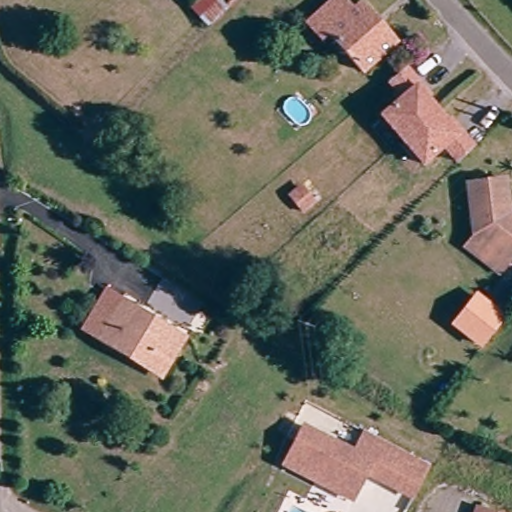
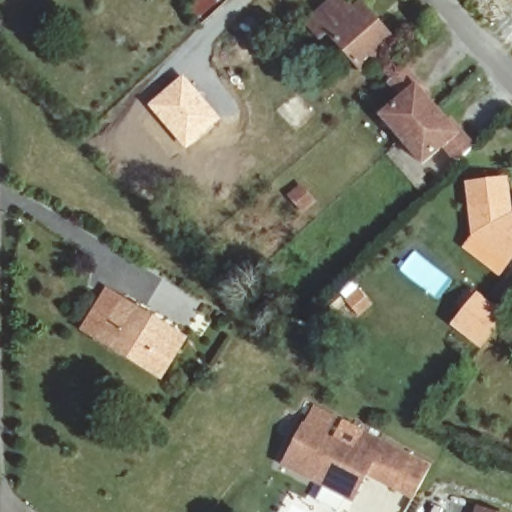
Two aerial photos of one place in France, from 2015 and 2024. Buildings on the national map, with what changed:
unchanged [(354,13),(361,7),(395,46),(363,75),(331,39),(325,44),(309,28),(339,0),(341,0),(354,13)]
unchanged [(467,137),(482,152),(477,156),(465,167),(450,151),(430,170),(379,118),(400,100),(386,84),(403,69),(421,88),(435,102),(432,105),(455,129),(457,126),(467,137)]
new [(182,75),(220,119),(185,149),(146,105),(182,75)]
unchanged [(512,207),(508,207),(509,220),(512,222),(512,267),(502,279),(470,252),(480,241),(479,240),(475,190),(511,187),(512,192),(512,207)]
unchanged [(475,290),(507,313),(482,347),(450,324),(475,290)]
unchanged [(95,331),(116,296),(179,336),(155,375),(112,348),(91,335),(95,331)]
unchanged [(356,453),(363,440),(430,472),(418,497),(370,473),(356,501),(286,467),(305,428),(356,453)]
unchanged [(502,512),(480,512),(485,503),(502,512)]

